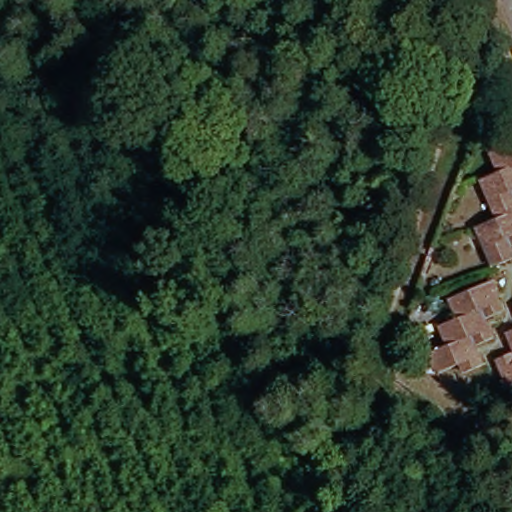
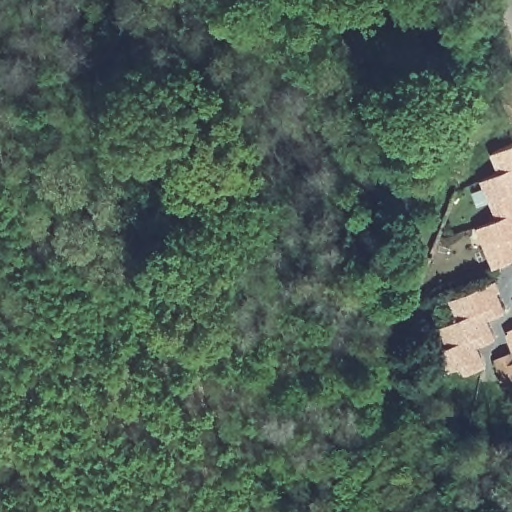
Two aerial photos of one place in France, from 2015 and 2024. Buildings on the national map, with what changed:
unchanged [(496,79),(512,73),(512,113),(496,79)]
unchanged [(499,272),(481,231),(501,225),(485,184),(500,175),(491,155),(512,145),(512,268),(499,272)]
unchanged [(496,276),(501,287),(496,293),(504,314),(488,322),(499,348),(476,358),(485,376),(463,386),(459,375),(439,383),(430,358),(451,348),(442,327),(459,320),(449,296),(496,276)]
unchanged [(512,310),(512,313),(511,310),(512,310)]
unchanged [(496,393),(500,390),(493,372),(511,364),(503,345),(512,340),(512,403),(502,407),(496,393)]

